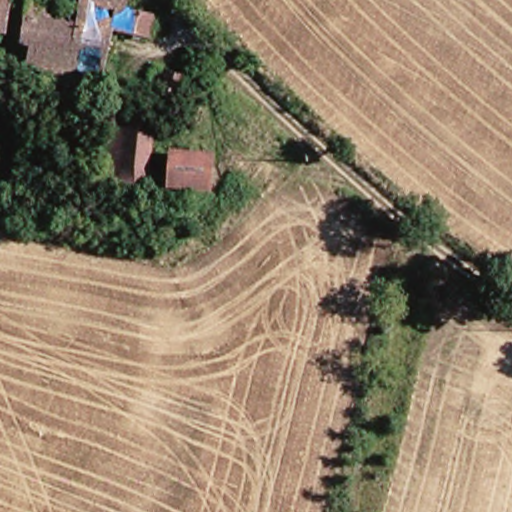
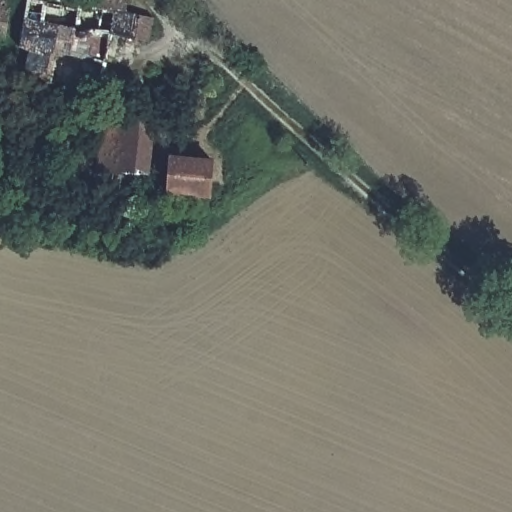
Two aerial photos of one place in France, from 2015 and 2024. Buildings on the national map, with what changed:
unchanged [(1,0),(0,10),(0,0),(1,0)]
unchanged [(131,15),(129,35),(107,33),(102,84),(77,80),(75,93),(24,85),(27,59),(15,56),(22,9),(55,14),(56,0),(124,0),(122,14),(131,15)]
unchanged [(6,10),(3,41),(0,41),(0,10),(6,10)]
unchanged [(168,67),(184,70),(178,99),(162,96),(168,67)]
unchanged [(142,118),(148,187),(95,190),(90,120),(142,118)]
unchanged [(171,160),(204,159),(206,194),(165,195),(165,192),(163,160),(171,160)]

